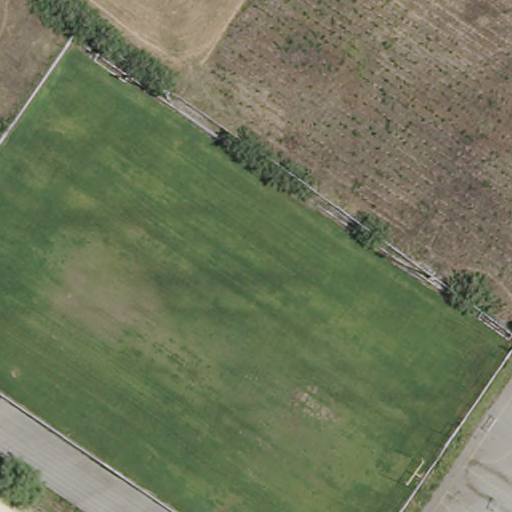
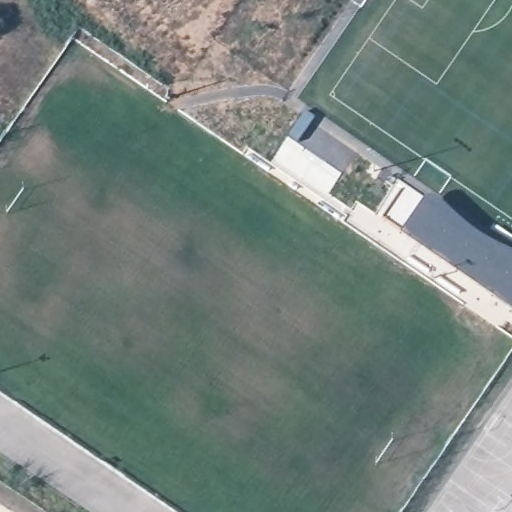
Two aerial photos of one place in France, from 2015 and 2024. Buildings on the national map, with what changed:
new [(427,199),(432,199),(441,204),(450,214),(462,224),(476,234),(495,245),(511,253),(512,253),(512,312),(400,235),(402,232),(383,220),(405,188),(424,200),(427,199)]

